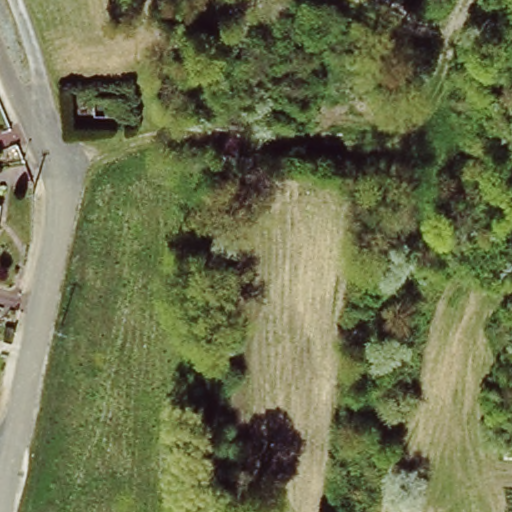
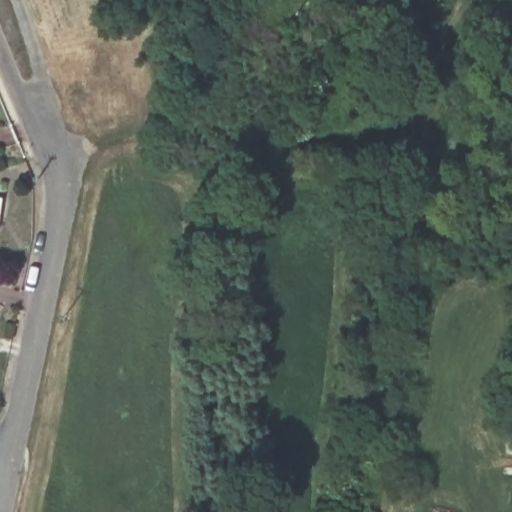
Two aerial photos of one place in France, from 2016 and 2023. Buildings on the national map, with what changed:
unchanged [(0,226),(0,199),(4,200),(0,226)]

